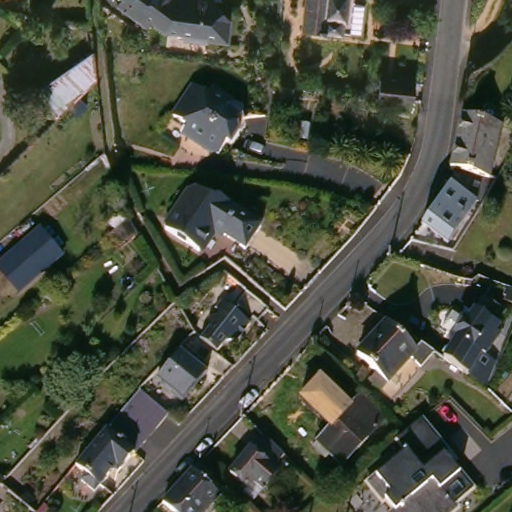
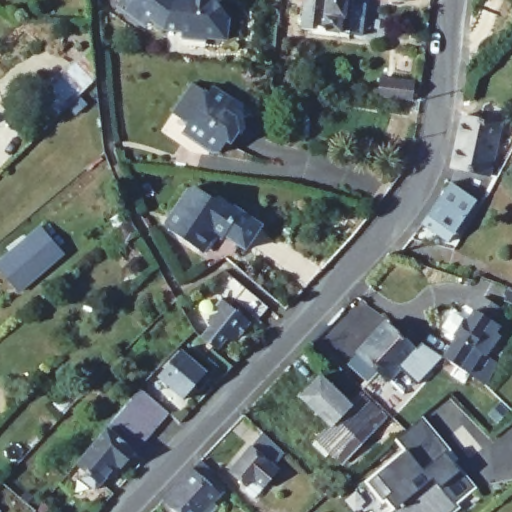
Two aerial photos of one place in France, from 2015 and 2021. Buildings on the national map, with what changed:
unchanged [(130,1),(131,0),(230,0),(239,12),(235,35),(217,31),(217,35),(193,30),(194,25),(176,22),(165,14),(160,21),(140,8),(130,1)]
unchanged [(313,0),(359,0),(359,2),(374,5),(370,36),(341,32),(310,29),(313,0)]
unchanged [(101,42),(104,80),(65,117),(43,98),(101,42)]
unchanged [(388,74),(424,79),(422,97),(386,93),(388,74)]
unchanged [(198,77),(214,88),(216,84),(223,83),(234,91),(236,97),(230,105),(242,112),(245,127),(238,140),(233,136),(225,147),(209,137),(209,139),(199,132),(189,126),(194,118),(178,107),(198,77)]
unchanged [(449,199),(466,180),(471,164),(466,162),(479,112),(512,122),(512,170),(509,175),(498,195),(493,203),(490,200),(458,238),(434,217),(444,205),(449,199)]
unchanged [(274,224),(258,247),(236,233),(220,236),(214,245),(212,250),(177,227),(177,224),(200,188),(208,186),(224,197),(232,196),(274,224)]
unchanged [(129,243),(118,230),(139,211),(148,228),(129,243)]
unchanged [(0,260),(38,221),(67,254),(21,295),(0,271),(0,260)]
unchanged [(238,297),(248,286),(270,305),(260,317),(252,310),(238,297)]
unchanged [(219,346),(204,333),(210,325),(207,317),(215,319),(220,304),(219,302),(224,295),(230,301),(246,315),(253,321),(240,336),(229,336),(220,347),(238,362),(227,373),(209,357),(219,346)]
unchanged [(483,375),(482,374),(483,372),(457,354),(469,335),(466,333),(476,317),(479,320),(486,308),(494,296),(510,307),(503,318),(497,327),(506,333),(496,352),(504,356),(492,382),(483,375)]
unchanged [(398,320),(428,347),(434,341),(444,350),(404,395),(384,377),(392,370),(371,350),(398,320)]
unchanged [(184,346),(208,368),(184,395),(160,372),(184,346)]
unchanged [(105,438),(111,430),(140,396),(148,388),(178,415),(127,467),(124,465),(108,484),(84,463),(90,455),(105,438)]
unchanged [(370,392),(393,415),(349,460),(339,450),(333,456),(319,442),(370,392)]
unchanged [(385,510),(392,503),(371,476),(405,447),(399,438),(431,413),(484,486),(449,512),(387,512),(385,510)]
unchanged [(249,462),(269,440),(289,460),(278,470),(283,475),(269,489),(259,480),(262,477),(249,462)]
unchanged [(208,458),(220,470),(214,477),(222,485),(226,481),(232,487),(207,512),(187,512),(171,496),(185,481),(208,458)]
unchanged [(508,498),(512,499),(512,512),(503,512),(508,498)]

